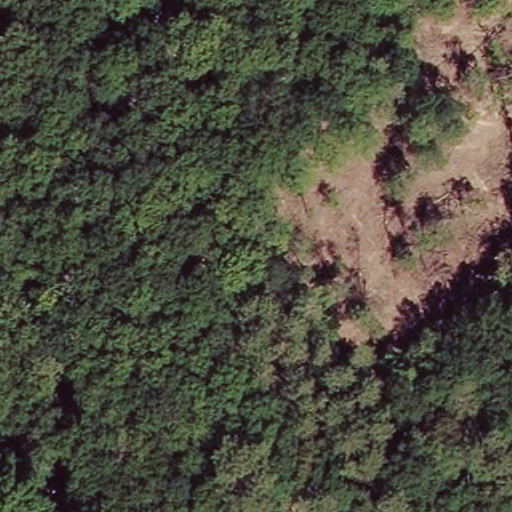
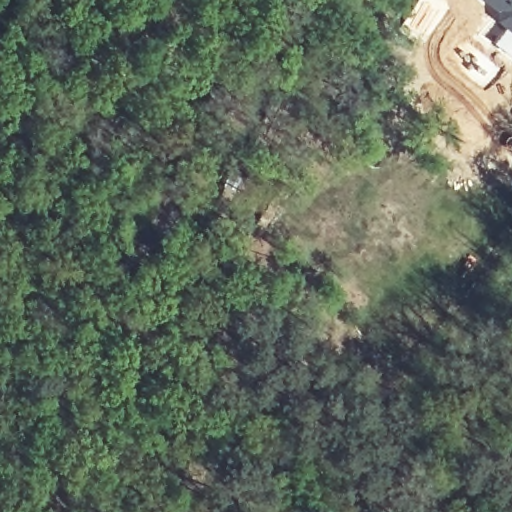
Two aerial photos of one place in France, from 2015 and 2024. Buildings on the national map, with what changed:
new [(498,22),(502,16),(483,0),(512,0),(512,33),(498,22)]
unchanged [(168,36),(125,53),(114,24),(153,5),(168,36)]

